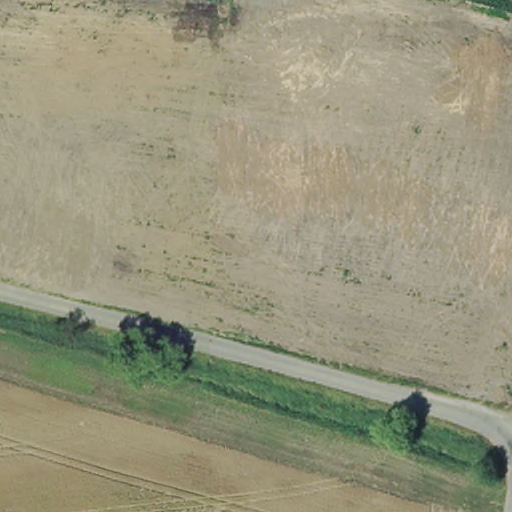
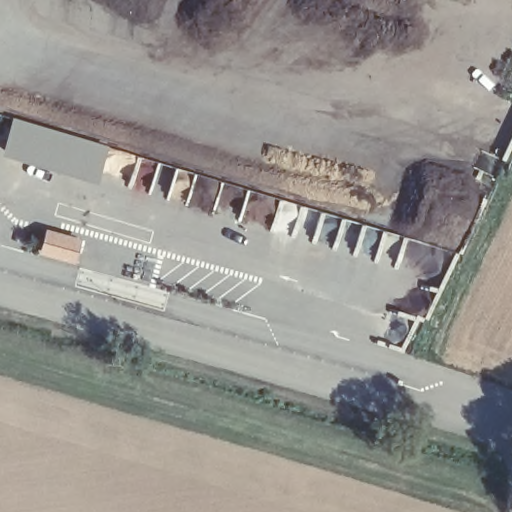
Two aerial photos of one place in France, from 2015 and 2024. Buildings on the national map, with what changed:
new [(14,117),(108,145),(98,184),(2,155),(14,117)]
new [(46,229),(83,239),(76,264),(39,254),(46,229)]

